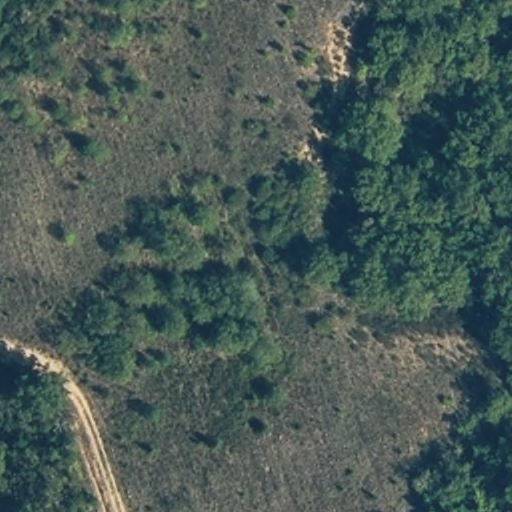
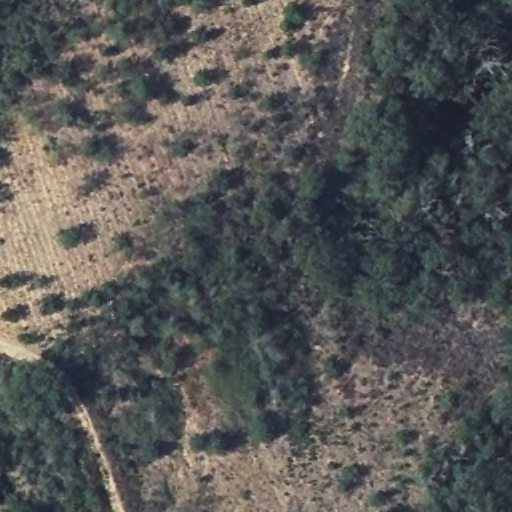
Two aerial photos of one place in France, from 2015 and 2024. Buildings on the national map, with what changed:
[]

